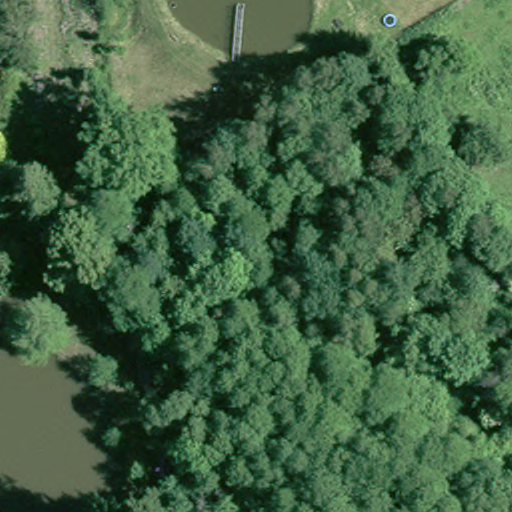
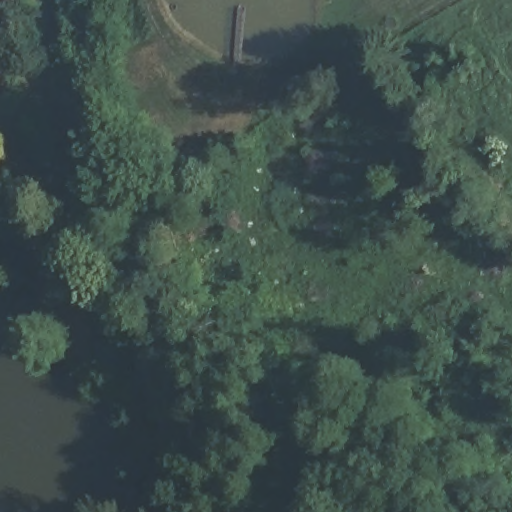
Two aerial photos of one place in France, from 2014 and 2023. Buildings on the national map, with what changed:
[]

